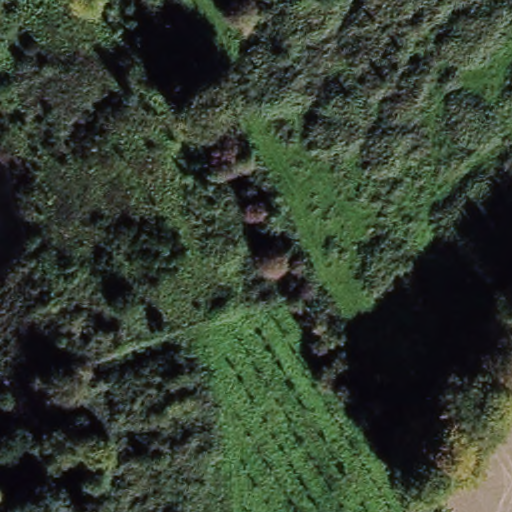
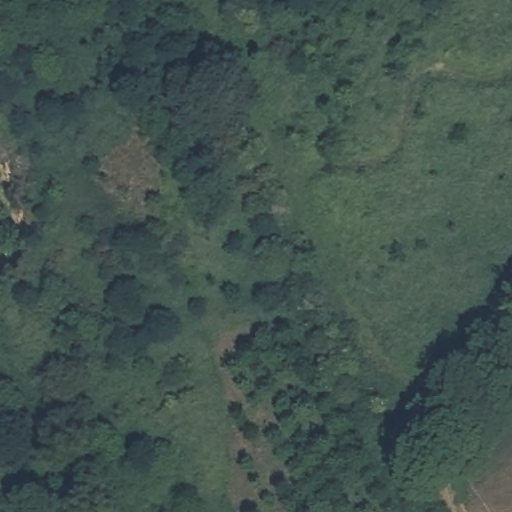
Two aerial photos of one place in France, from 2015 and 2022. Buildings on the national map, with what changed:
[]

